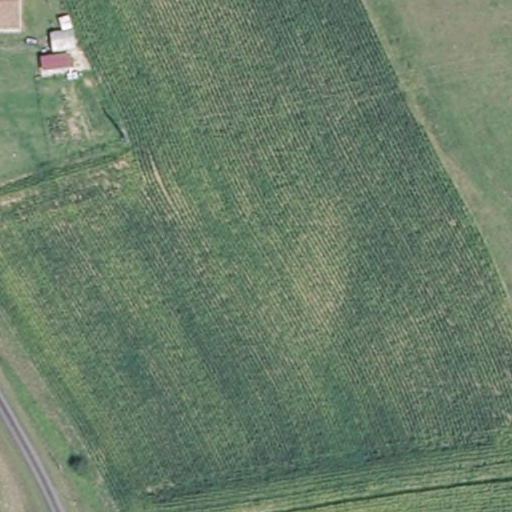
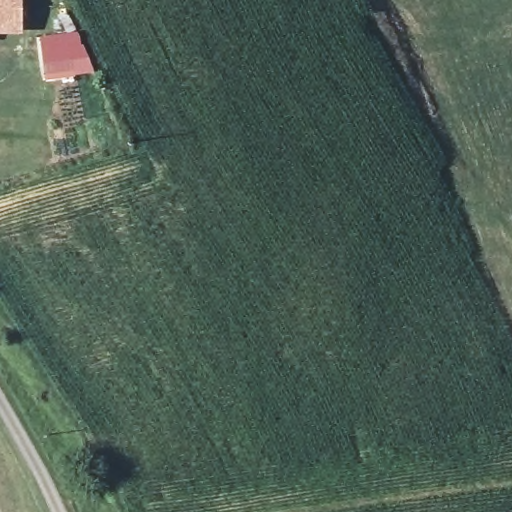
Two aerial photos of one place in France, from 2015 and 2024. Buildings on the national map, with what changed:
unchanged [(0,33),(0,0),(20,0),(20,33),(0,33)]
new [(79,29),(93,71),(45,79),(39,36),(79,29)]

